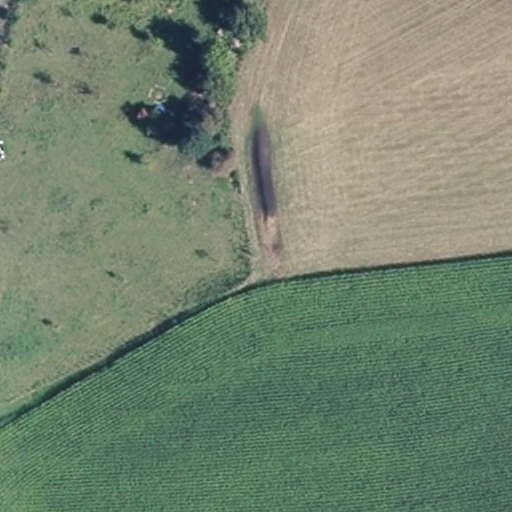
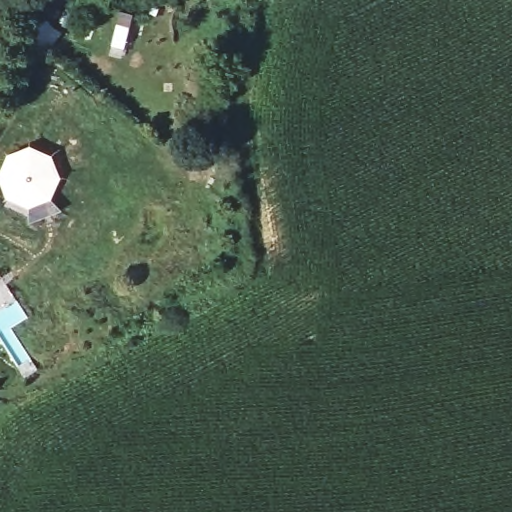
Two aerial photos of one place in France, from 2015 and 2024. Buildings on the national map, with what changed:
new [(7,152),(30,144),(52,155),(61,176),(51,197),(61,210),(50,215),(29,222),(28,209),(24,207),(5,198),(0,181),(0,168),(7,152)]

